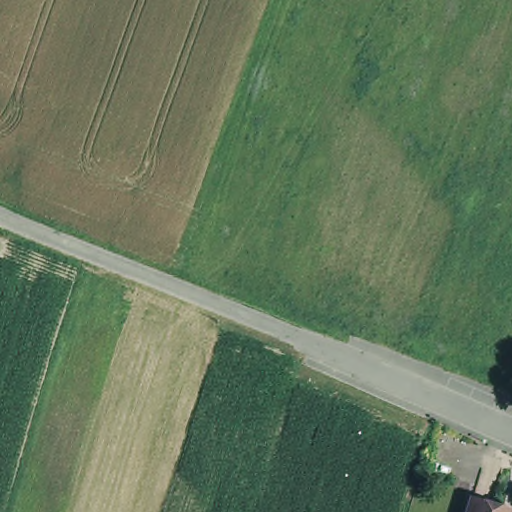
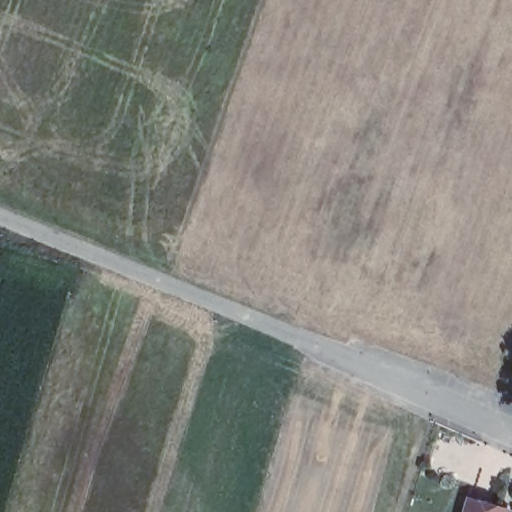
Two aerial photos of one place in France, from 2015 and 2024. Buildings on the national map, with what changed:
unchanged [(473,496),(509,507),(512,508),(511,512),(468,512),(473,496)]

